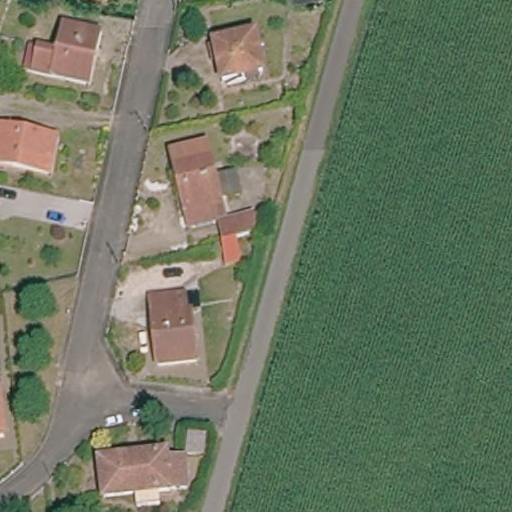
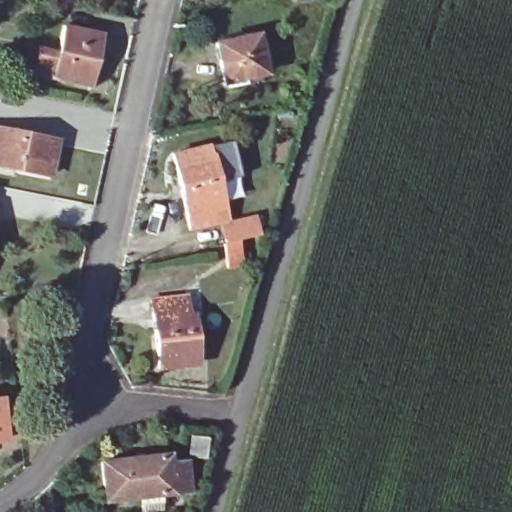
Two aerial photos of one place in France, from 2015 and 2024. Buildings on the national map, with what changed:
unchanged [(34,64),(37,45),(58,50),(64,24),(102,33),(90,86),(32,74),(23,73),(25,63),(34,64)]
unchanged [(255,35),(263,72),(224,80),(215,44),(255,35)]
unchanged [(57,139),(50,175),(0,166),(0,128),(57,139)]
unchanged [(214,222),(190,228),(172,154),(208,145),(216,178),(237,172),(243,194),(222,200),(222,205),(226,219),(214,222)]
unchanged [(221,224),(254,216),(257,235),(226,242),(221,224)]
unchanged [(184,297),(186,315),(191,315),(197,363),(160,367),(152,300),(184,297)]
unchanged [(1,398),(5,439),(0,439),(0,398),(1,398)]
unchanged [(186,457),(189,435),(207,437),(205,459),(186,457)]
unchanged [(146,512),(138,512),(137,497),(105,501),(101,462),(167,454),(169,464),(185,462),(188,491),(160,494),(162,510),(146,512)]

